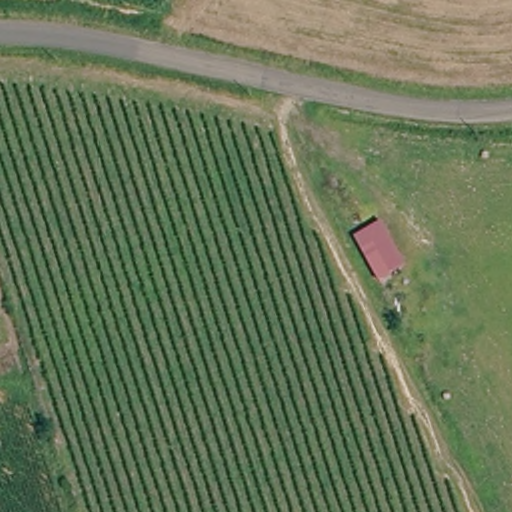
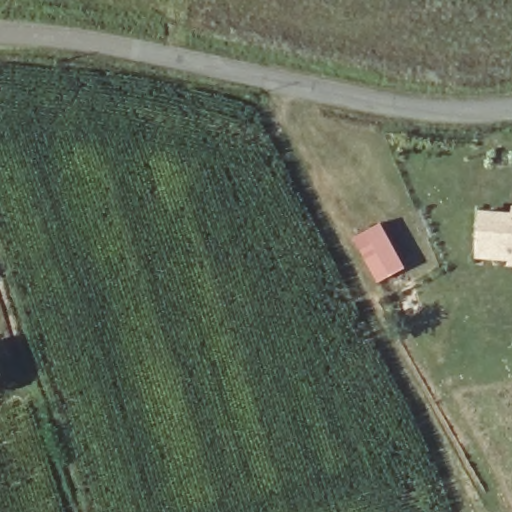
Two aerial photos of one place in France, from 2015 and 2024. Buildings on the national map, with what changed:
new [(512,266),(509,265),(510,258),(477,257),(480,209),(512,211),(512,266)]
unchanged [(376,278),(356,239),(378,228),(398,268),(376,278)]

